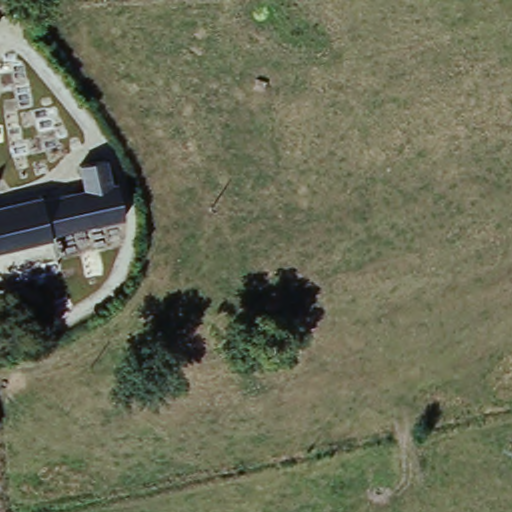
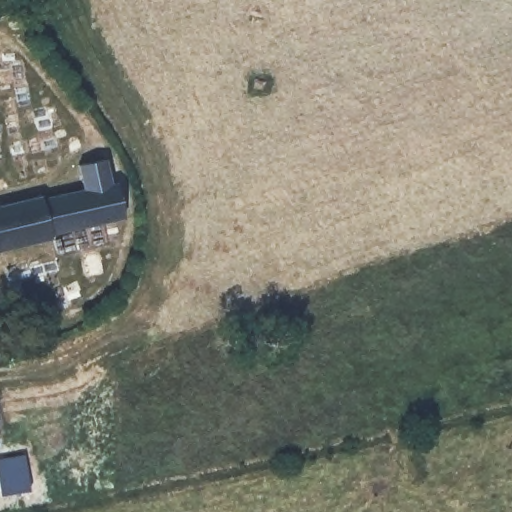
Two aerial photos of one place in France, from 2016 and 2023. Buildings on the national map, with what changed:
unchanged [(43,205),(84,196),(80,170),(106,164),(111,189),(116,188),(124,222),(51,239),(52,244),(0,255),(0,211),(41,201),(43,205)]
unchanged [(0,433),(0,392),(4,393),(1,433),(0,433)]
new [(31,494),(1,497),(0,485),(0,461),(26,457),(31,494)]

